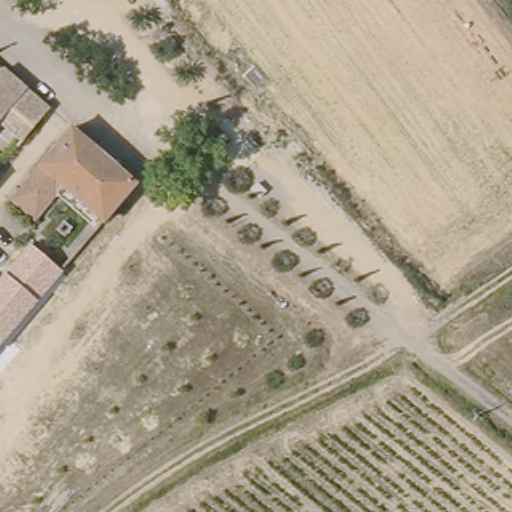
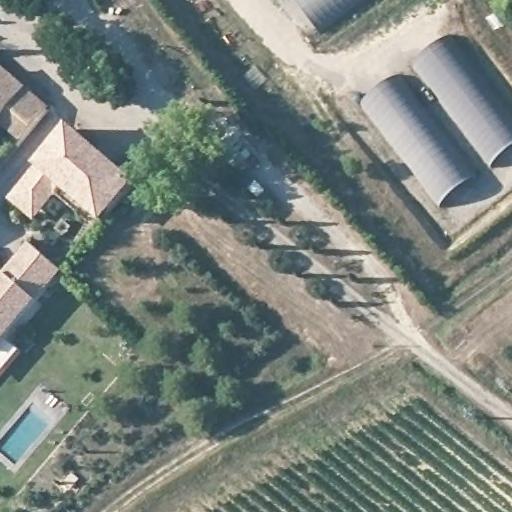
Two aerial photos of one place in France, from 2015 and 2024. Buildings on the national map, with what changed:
new [(298,0),(366,0),(322,31),(298,0)]
new [(512,115),(512,149),(491,167),(412,66),(452,36),(512,115)]
unchanged [(0,79),(7,71),(48,103),(19,145),(0,130),(0,79)]
new [(476,178),(439,207),(360,105),(400,77),(476,178)]
unchanged [(127,178),(116,193),(92,224),(50,190),(29,216),(7,198),(67,123),(125,171),(127,178)]
unchanged [(62,270),(0,350),(0,278),(28,243),(62,270)]

